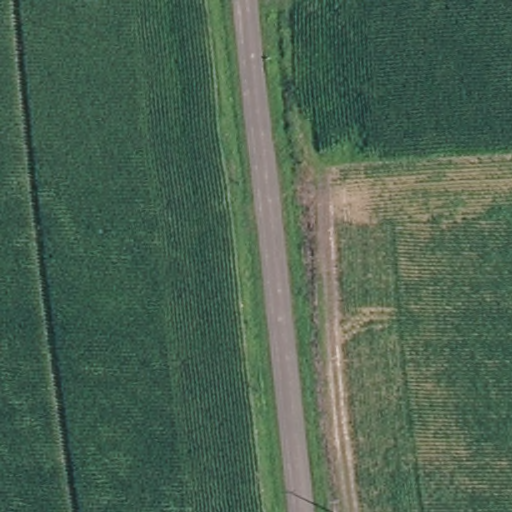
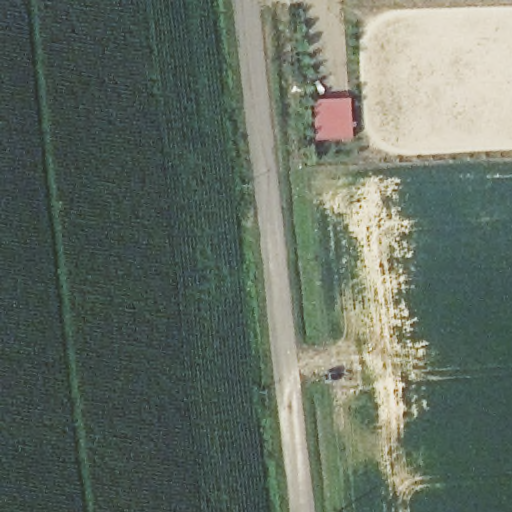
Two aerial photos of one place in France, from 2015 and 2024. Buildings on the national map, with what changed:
new [(350,97),(352,139),(311,141),(308,100),(350,97)]

